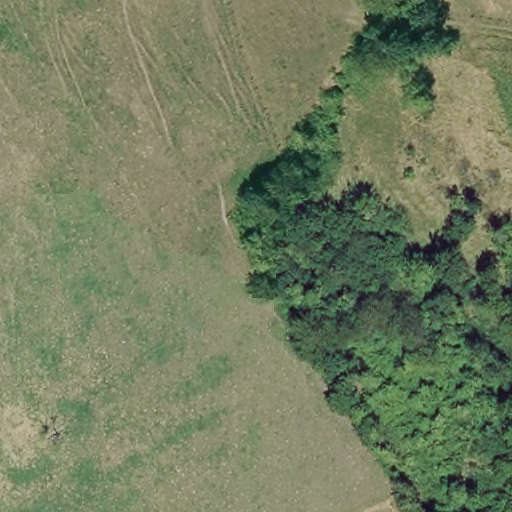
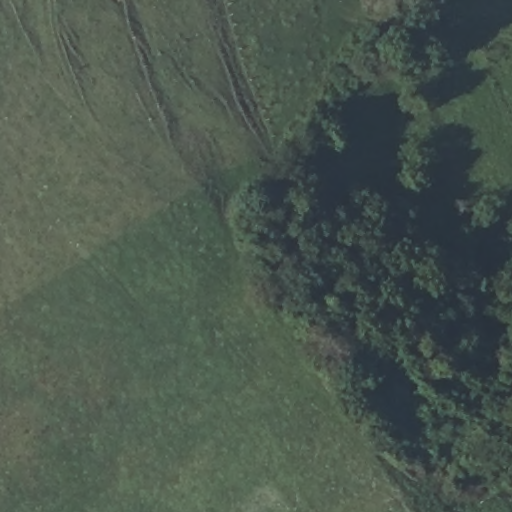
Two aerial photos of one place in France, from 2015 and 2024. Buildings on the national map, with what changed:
[]

